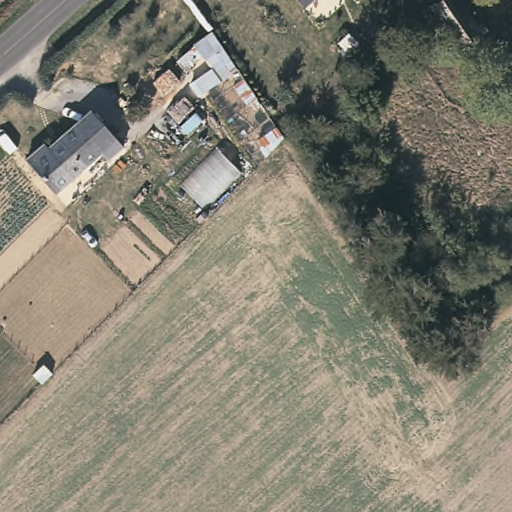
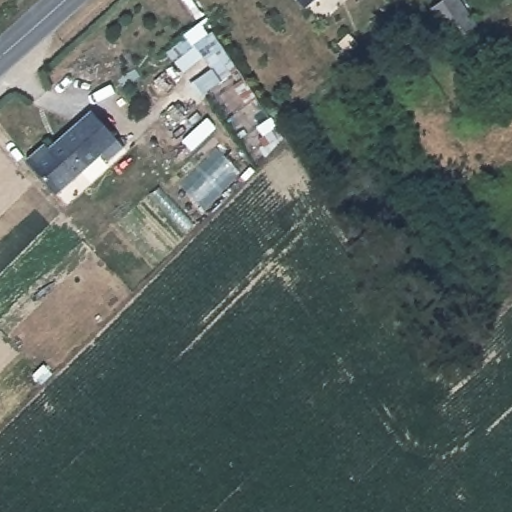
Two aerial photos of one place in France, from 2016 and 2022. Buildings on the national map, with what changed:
unchanged [(482,37),(461,51),(432,9),(444,0),(457,0),(482,37)]
unchanged [(236,71),(212,92),(202,78),(212,69),(207,62),(221,51),(236,71)]
unchanged [(259,99),(246,107),(234,89),(245,79),(259,99)]
unchanged [(125,145),(108,159),(101,154),(55,192),(25,158),(44,141),(48,145),(91,107),(125,145)]
unchanged [(285,137),(263,152),(255,140),(277,125),(285,137)]
unchanged [(493,243),(512,225),(512,254),(507,259),(493,243)]

